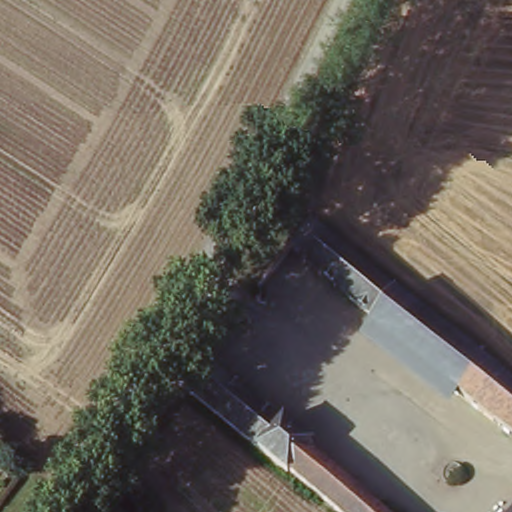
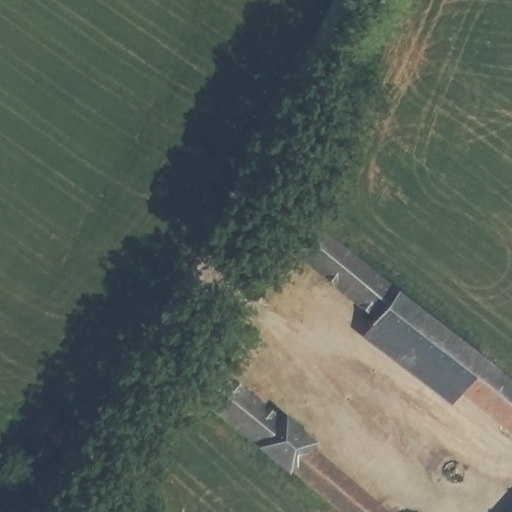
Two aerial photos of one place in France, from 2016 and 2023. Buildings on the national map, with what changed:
unchanged [(300,205),(315,187),(325,195),(309,216),(300,205)]
unchanged [(447,384),(367,315),(372,311),(290,241),(312,212),(486,357),(512,378),(512,440),(480,413),(447,384)]
unchanged [(435,399),(355,327),(367,315),(447,384),(435,399)]
unchanged [(291,473),(175,373),(202,345),(276,407),(281,401),(313,431),(307,437),(384,504),(393,512),(335,512),(291,473)]
unchanged [(512,503),(512,512),(504,512),(512,503)]

